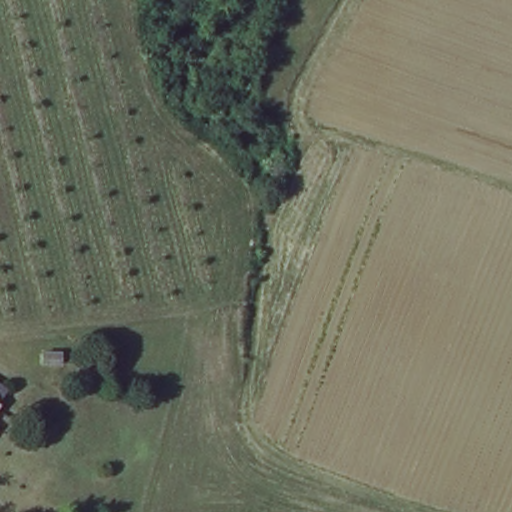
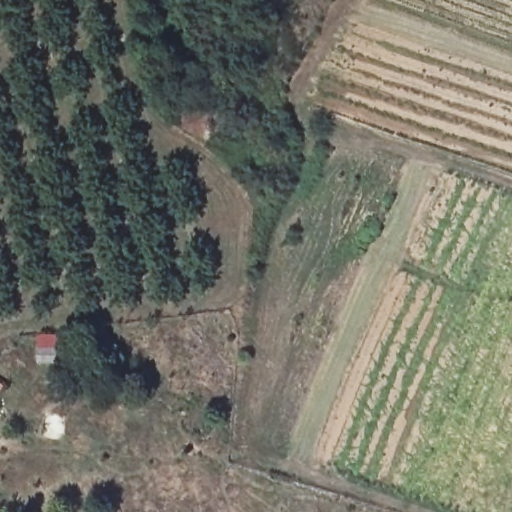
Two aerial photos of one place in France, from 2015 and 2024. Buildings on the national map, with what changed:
unchanged [(0,406),(0,404),(1,405),(0,406)]

